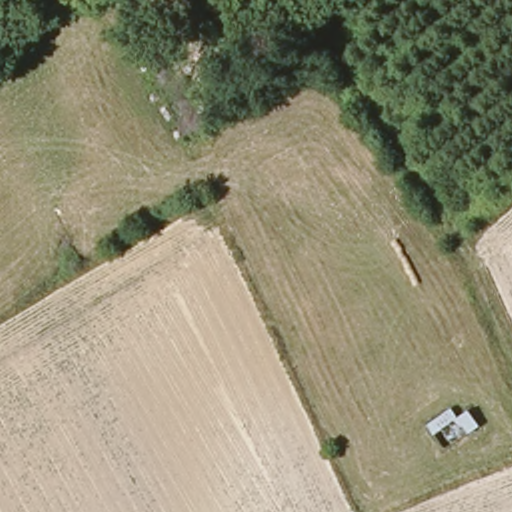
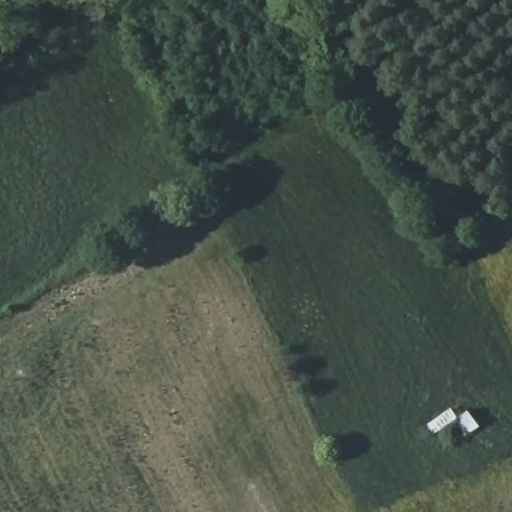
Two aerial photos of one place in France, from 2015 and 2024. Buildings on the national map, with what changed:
unchanged [(429,427),(456,408),(463,417),(472,410),(485,428),(450,453),(429,427)]

